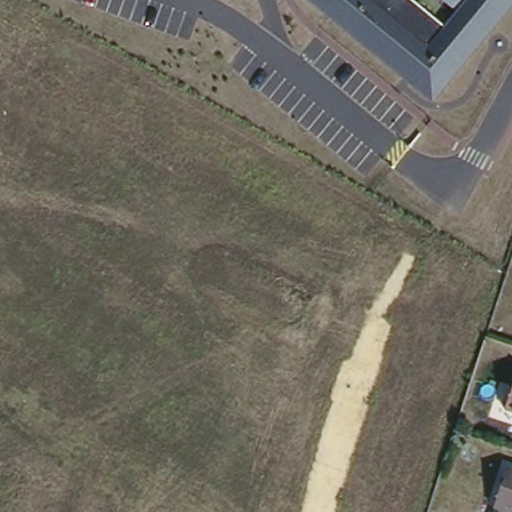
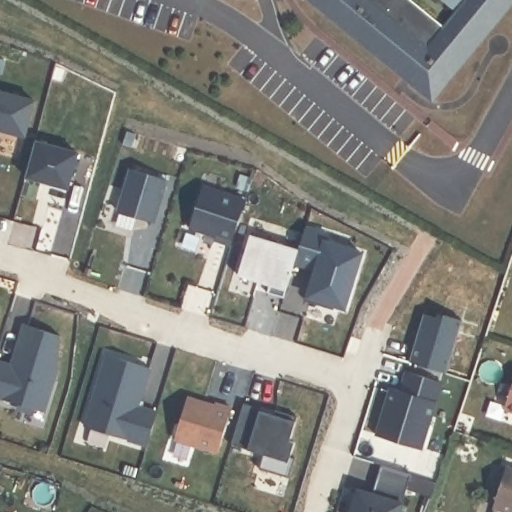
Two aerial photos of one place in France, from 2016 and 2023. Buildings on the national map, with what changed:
unchanged [(306,0),(412,0),(441,24),(453,10),(443,0),(512,0),(512,6),(435,102),(306,0)]
new [(25,135),(0,128),(0,92),(34,101),(25,135)]
new [(166,180),(153,222),(118,212),(131,169),(166,180)]
new [(231,245),(215,240),(216,236),(189,228),(203,186),(246,200),(231,245)]
new [(368,243),(350,306),(305,293),(314,266),(295,263),(307,224),(368,243)]
new [(267,293),(269,285),(238,275),(250,235),(298,250),(295,263),(284,298),(267,293)]
new [(416,345),(414,344),(417,336),(419,331),(423,315),(443,321),(444,316),(462,321),(446,373),(411,362),(416,345)]
new [(23,324),(60,336),(56,370),(43,412),(0,399),(0,362),(11,365),(23,324)]
new [(147,445),(85,426),(106,355),(149,368),(138,406),(157,412),(147,445)]
new [(401,390),(407,371),(442,382),(421,449),(376,435),(391,387),(401,390)]
unchanged [(503,409),(512,382),(512,412),(503,409)]
new [(187,397),(214,405),(215,403),(231,408),(218,452),(175,439),(187,397)]
new [(260,410),(262,405),(275,409),(297,416),(290,440),(294,442),(290,456),(295,457),(289,477),(259,468),(263,454),(231,444),(243,403),(261,408),(260,410)]
new [(400,512),(351,512),(358,490),(372,494),(380,465),(411,474),(400,512)]
unchanged [(512,468),(512,512),(504,512),(492,508),(507,466),(512,468)]

